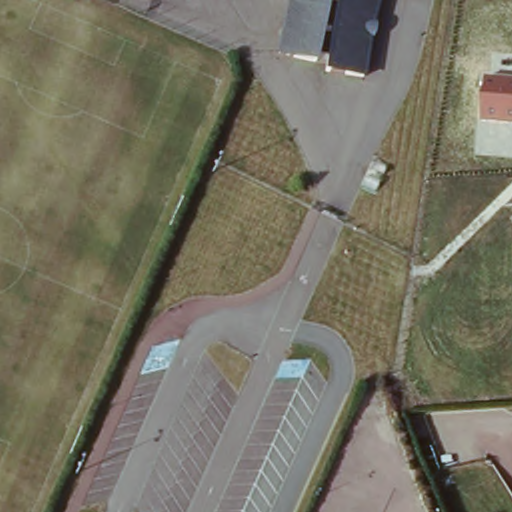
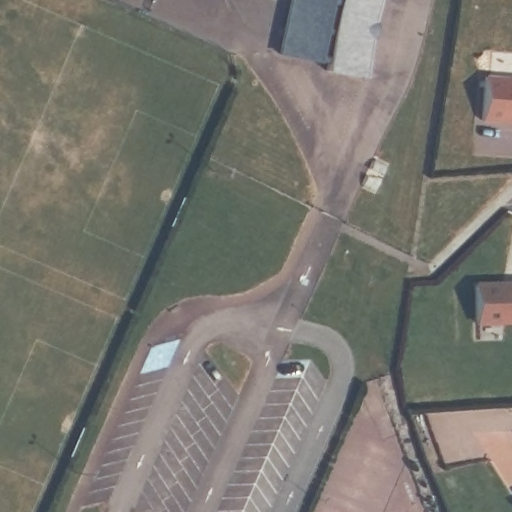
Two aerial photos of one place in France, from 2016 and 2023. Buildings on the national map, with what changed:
unchanged [(377,24),(366,77),(274,52),(288,0),(384,0),(377,24)]
unchanged [(486,77),(512,80),(512,128),(481,124),(486,77)]
new [(512,321),(475,321),(475,280),(512,280),(512,321)]

